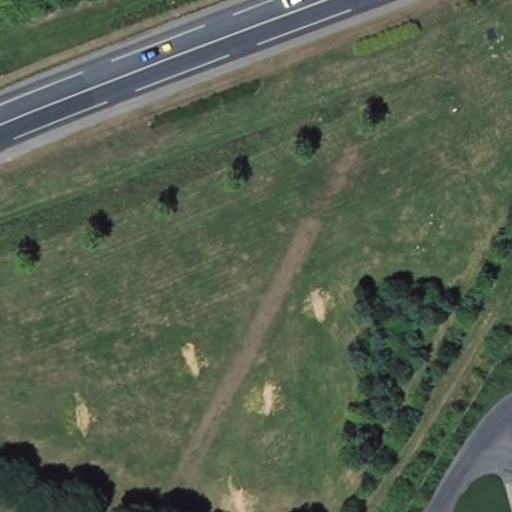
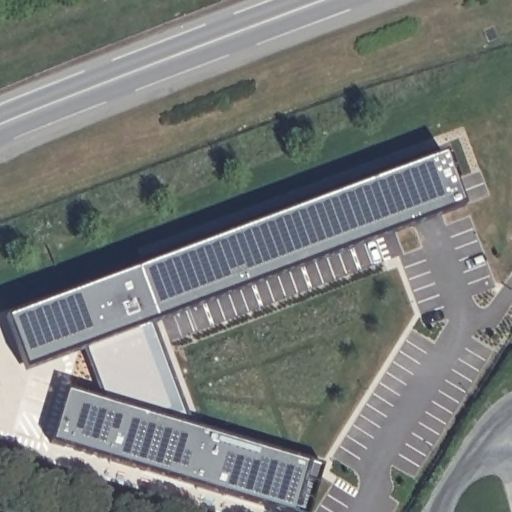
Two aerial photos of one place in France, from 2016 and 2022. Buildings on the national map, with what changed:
new [(150,322),(192,430),(320,465),(308,512),(291,512),(52,440),(69,392),(105,404),(83,346),(23,368),(6,319),(443,156),(460,207),(150,322)]

